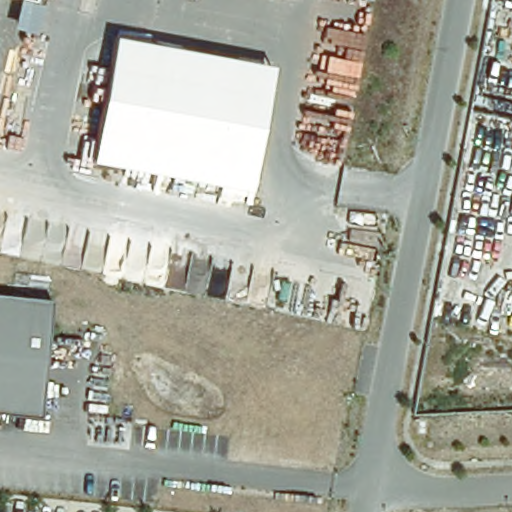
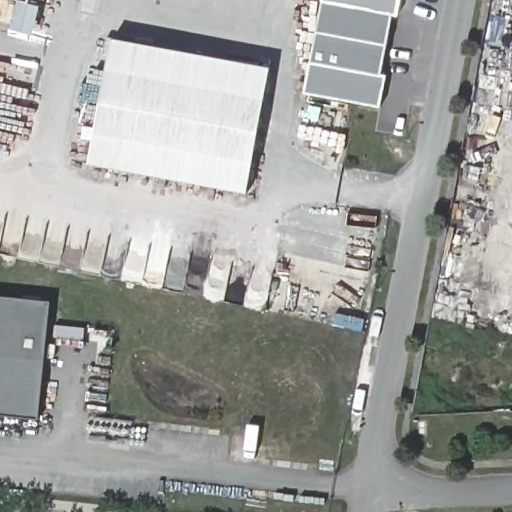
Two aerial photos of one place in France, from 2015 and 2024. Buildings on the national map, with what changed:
unchanged [(27,1),(22,0),(27,0),(27,1)]
new [(378,104),(308,91),(323,0),(396,0),(378,104)]
unchanged [(113,37),(268,66),(245,192),(89,163),(113,37)]
unchanged [(51,302),(39,415),(0,411),(0,296),(51,302)]

